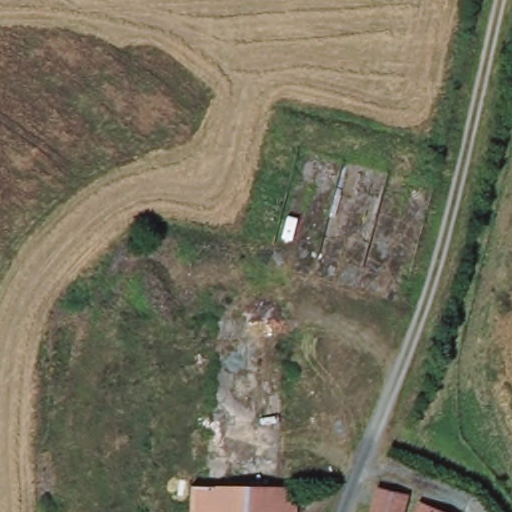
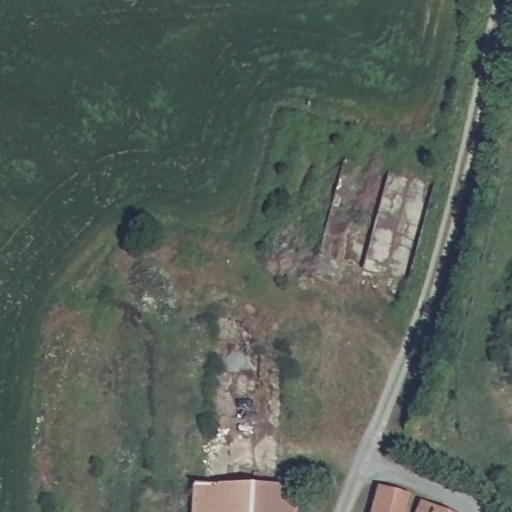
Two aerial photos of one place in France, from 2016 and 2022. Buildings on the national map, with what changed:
unchanged [(230,478),(234,478),(233,512),(188,512),(189,478),(230,478)]
unchanged [(293,512),(233,512),(234,478),(294,481),(293,512)]
unchanged [(408,495),(402,512),(371,512),(380,488),(408,495)]
unchanged [(448,512),(412,512),(418,499),(448,512)]

